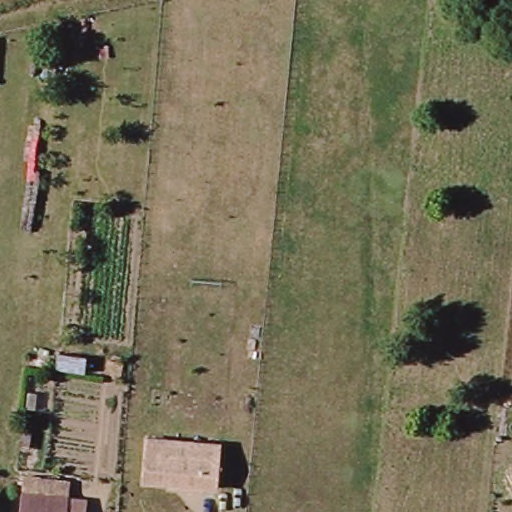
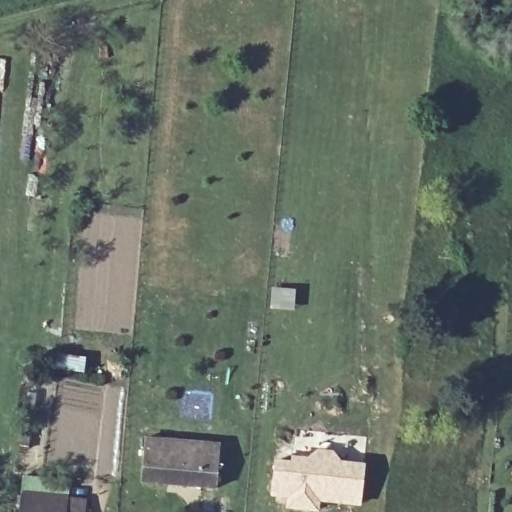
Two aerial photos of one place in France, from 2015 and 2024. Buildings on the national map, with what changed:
unchanged [(91,354),(90,373),(64,369),(65,352),(91,354)]
unchanged [(148,442),(224,449),(220,491),(144,484),(148,442)]
new [(275,457),(291,454),(333,449),(341,460),(366,463),(361,507),(321,502),(319,512),(316,512),(285,508),(286,498),(270,496),(275,457)]
unchanged [(78,502),(77,512),(17,512),(20,479),(60,482),(59,500),(78,502)]

